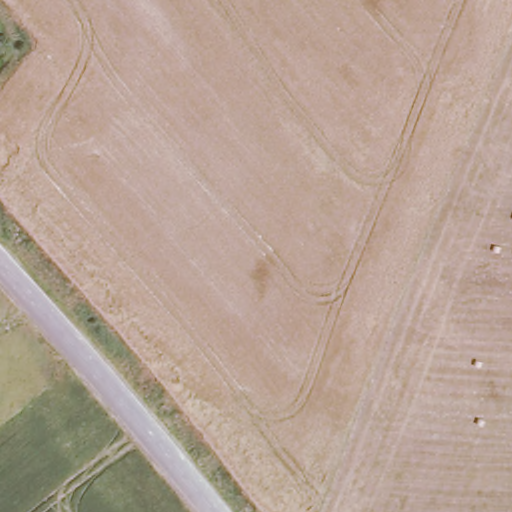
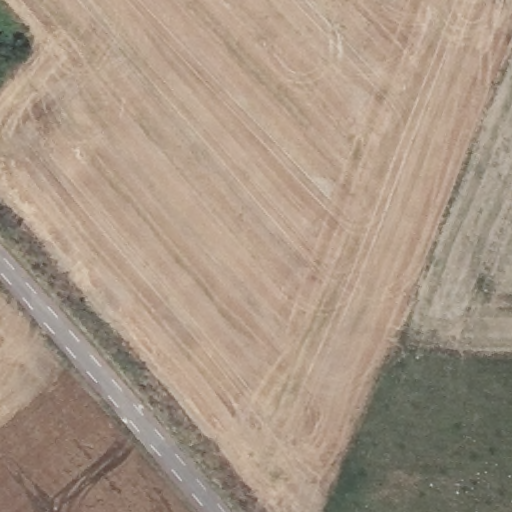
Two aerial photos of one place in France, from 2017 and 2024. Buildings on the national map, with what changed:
[]

